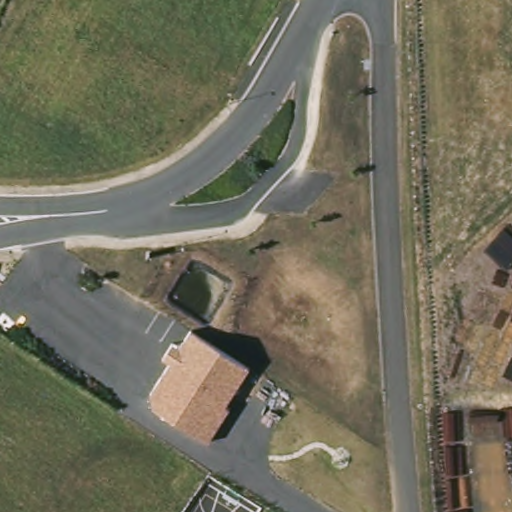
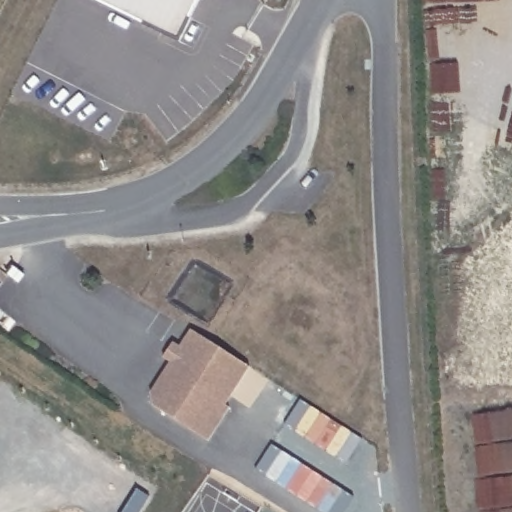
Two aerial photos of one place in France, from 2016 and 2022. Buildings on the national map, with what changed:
new [(93,0),(199,0),(179,43),(93,0)]
unchanged [(153,406),(150,392),(169,360),(164,357),(174,341),(181,346),(191,330),(248,370),(225,405),(229,409),(207,441),(153,406)]

